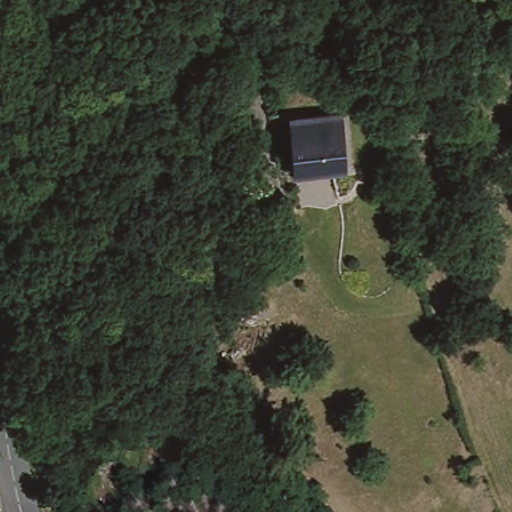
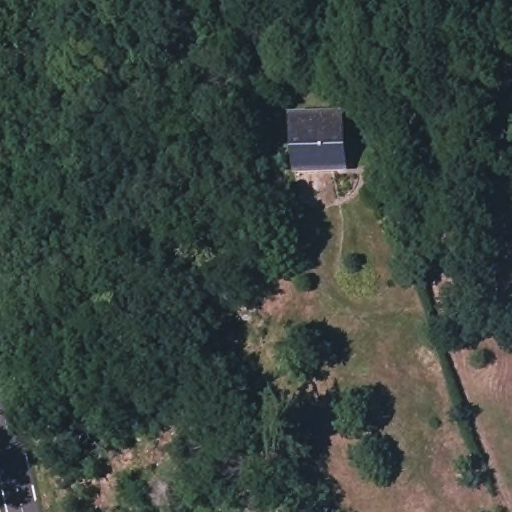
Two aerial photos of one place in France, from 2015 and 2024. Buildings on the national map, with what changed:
unchanged [(343,104),(350,172),(287,176),(283,107),(343,104)]

